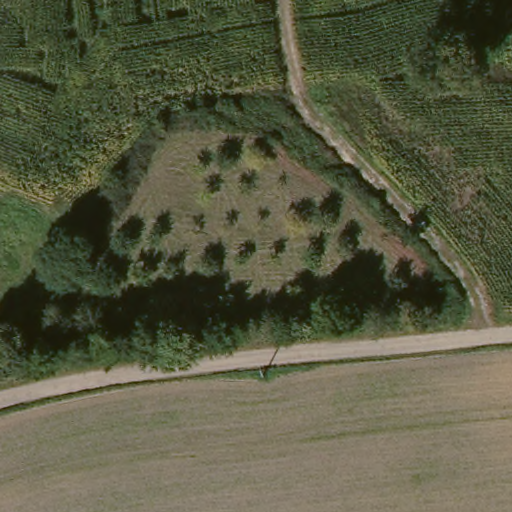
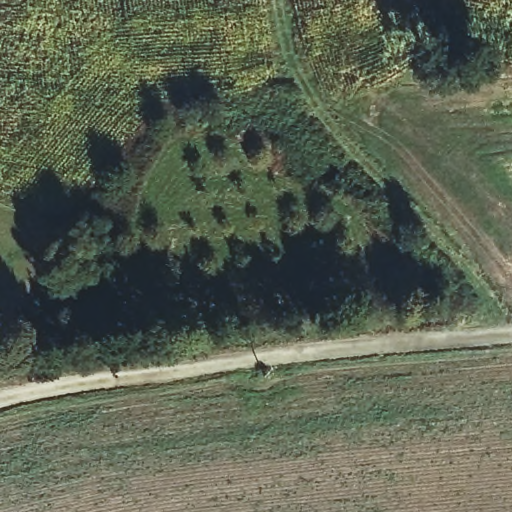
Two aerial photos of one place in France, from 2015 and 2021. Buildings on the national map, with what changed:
[]

